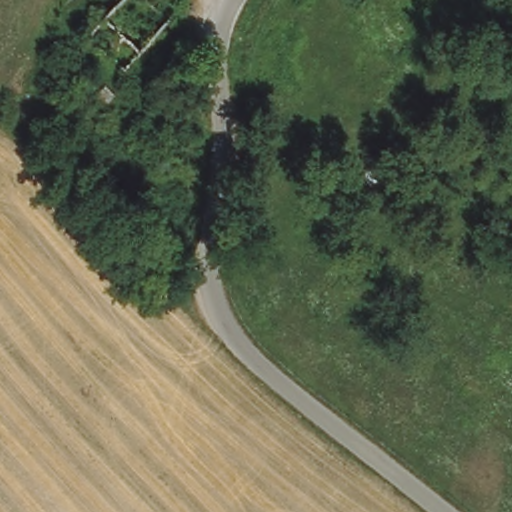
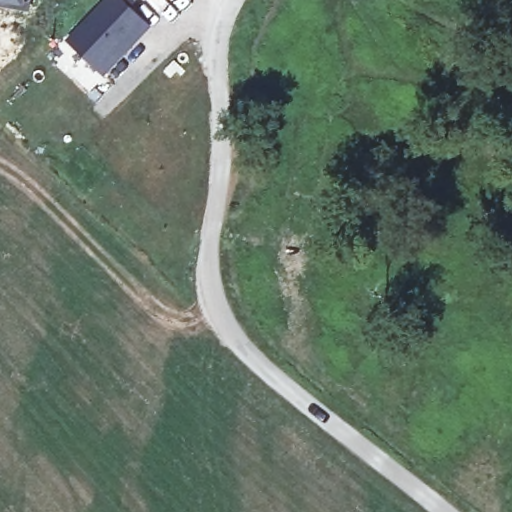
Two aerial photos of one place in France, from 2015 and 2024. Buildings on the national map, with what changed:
new [(0,7),(0,0),(31,0),(29,12),(0,7)]
new [(122,0),(150,27),(105,73),(72,41),(111,0),(122,0)]

